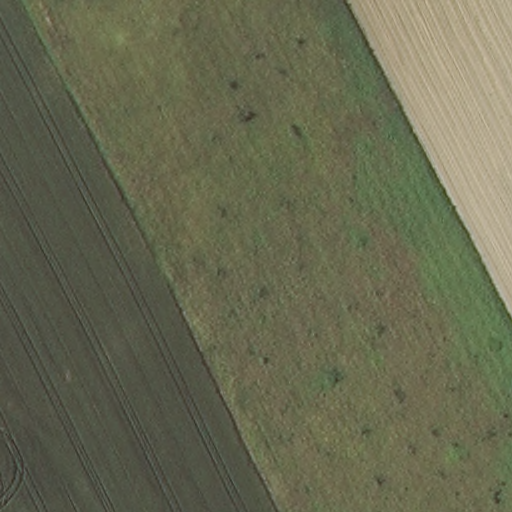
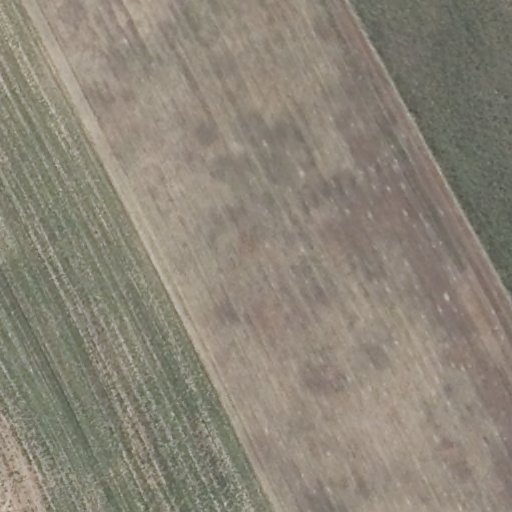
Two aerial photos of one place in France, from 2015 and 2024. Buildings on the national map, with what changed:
[]

